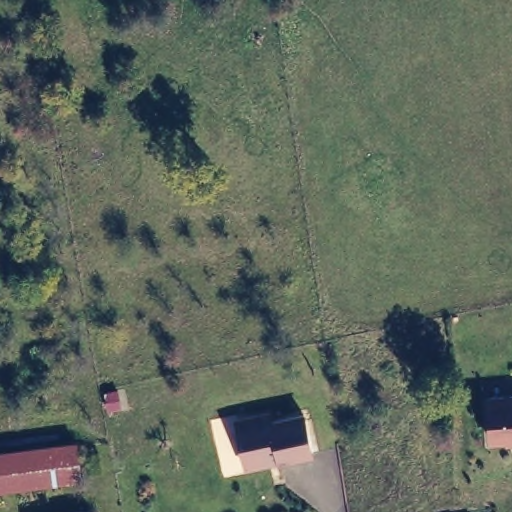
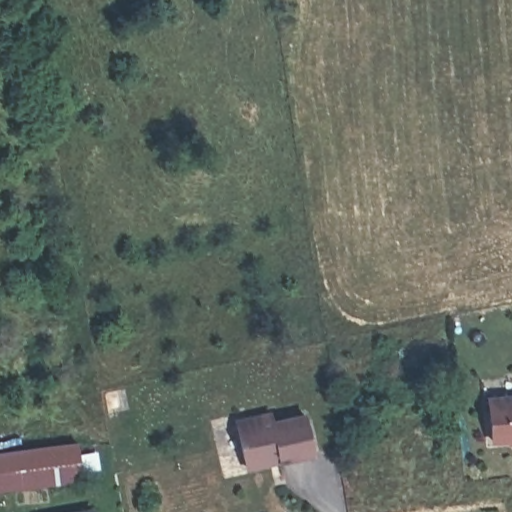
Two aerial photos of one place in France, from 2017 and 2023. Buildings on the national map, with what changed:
unchanged [(245,465),(235,421),(270,414),(272,420),(283,417),(281,402),(301,398),(308,440),(288,445),(289,456),(245,465)]
unchanged [(512,441),(494,442),(490,399),(512,398),(512,441)]
unchanged [(86,473),(0,485),(0,444),(80,432),(86,473)]
unchanged [(94,512),(54,512),(93,505),(94,512)]

